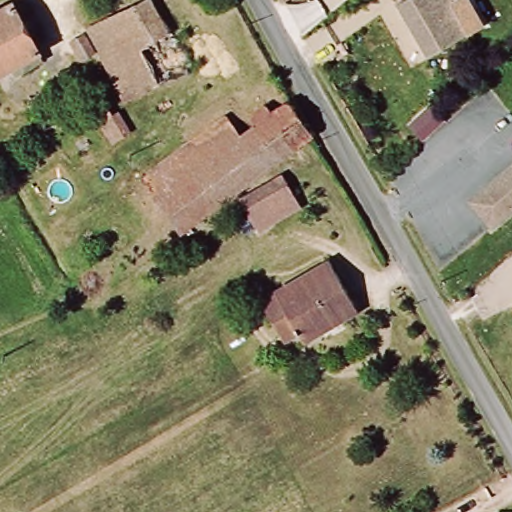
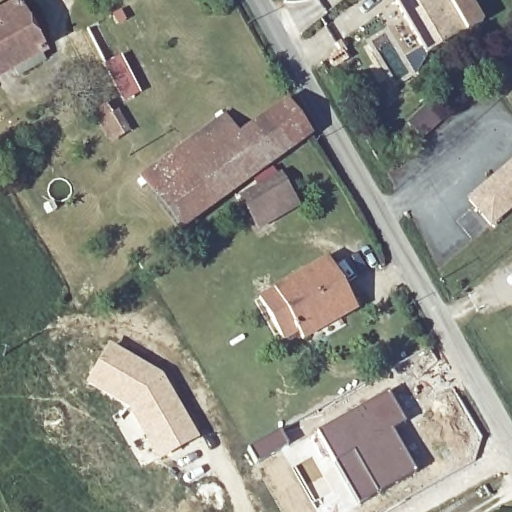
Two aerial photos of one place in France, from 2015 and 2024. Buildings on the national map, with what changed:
unchanged [(400,0),(456,0),(450,3),(466,33),(425,56),(395,3),(400,0)]
unchanged [(42,50),(0,73),(0,10),(15,3),(42,50)]
unchanged [(89,32),(98,52),(85,60),(74,40),(89,32)]
unchanged [(447,117),(423,138),(409,121),(432,101),(447,117)]
unchanged [(134,129),(126,135),(119,139),(101,109),(110,104),(118,115),(125,111),(134,129)]
unchanged [(226,121),(240,141),(287,107),(310,140),(177,234),(141,182),(226,121)]
unchanged [(512,167),(512,209),(489,227),(468,201),(512,167)]
unchanged [(293,187),(307,205),(282,222),(270,204),(293,187)]
unchanged [(330,257),(356,304),(301,336),(296,327),(285,333),(280,335),(259,297),(262,295),(330,257)]
new [(109,344),(162,374),(200,437),(155,461),(153,458),(141,438),(125,410),(116,403),(85,384),(109,344)]
new [(387,393),(405,423),(392,431),(415,473),(360,506),(316,432),(387,393)]
new [(283,429),(291,442),(257,463),(248,448),(283,429)]

